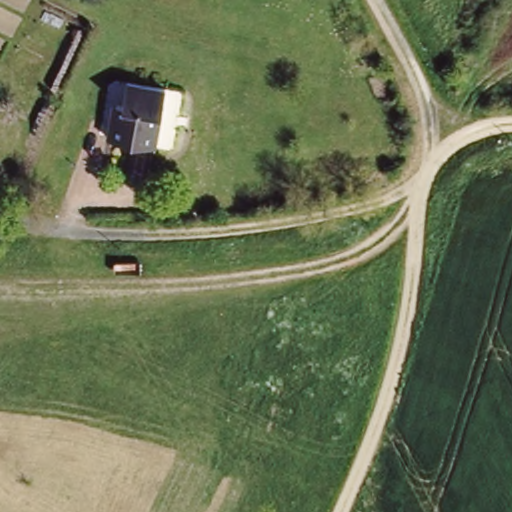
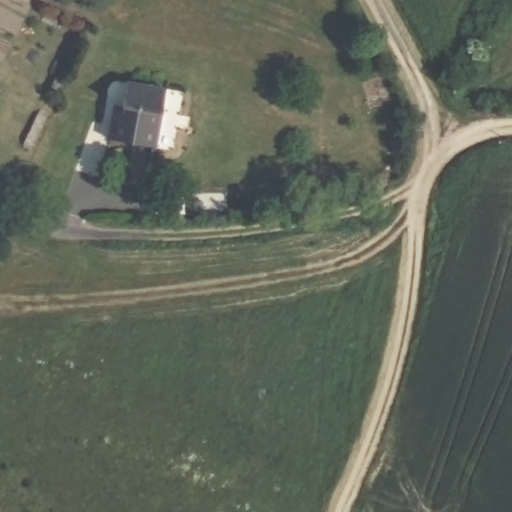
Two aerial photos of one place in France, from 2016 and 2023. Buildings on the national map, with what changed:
unchanged [(115,112),(120,112),(121,104),(127,105),(130,82),(168,88),(159,145),(111,138),(115,112)]

